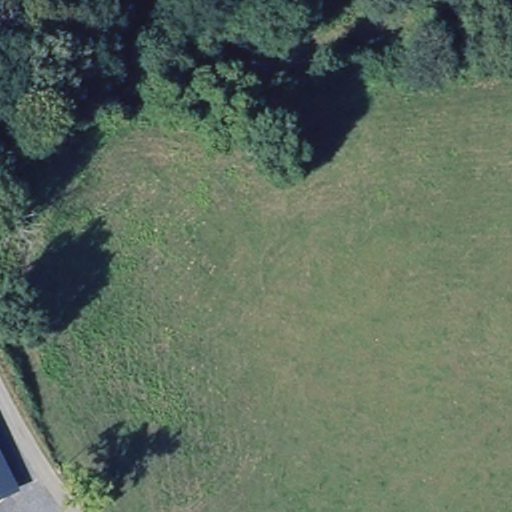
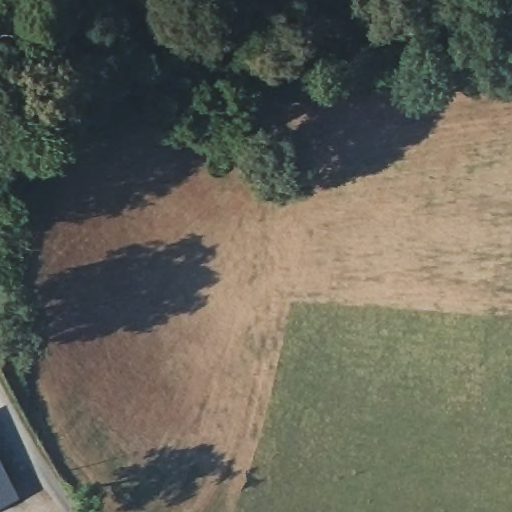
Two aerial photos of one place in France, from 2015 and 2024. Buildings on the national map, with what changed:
unchanged [(0,502),(0,456),(18,493),(0,502)]

